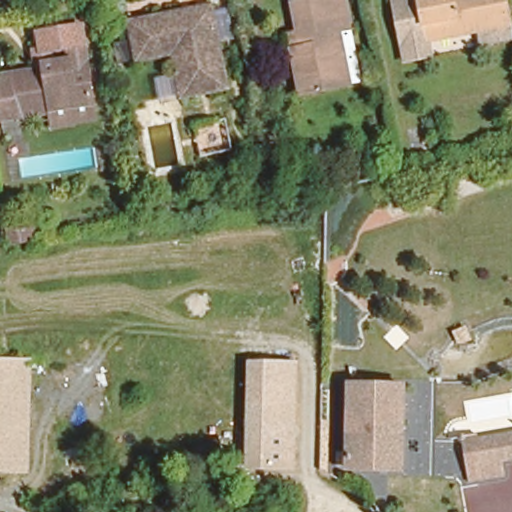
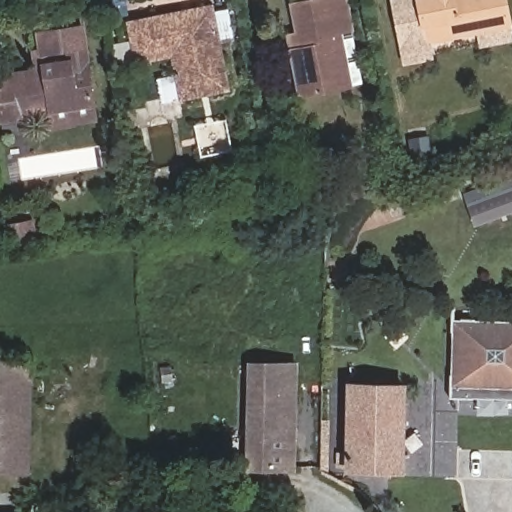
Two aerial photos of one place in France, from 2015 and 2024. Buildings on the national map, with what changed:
unchanged [(343,91),(296,103),(286,60),(282,45),(297,41),(292,17),(321,11),(318,0),(337,0),(345,39),(355,88),(343,91)]
unchanged [(488,30),(488,29),(435,40),(435,41),(437,55),(412,60),(401,0),(512,0),(512,39),(491,42),(488,30)]
unchanged [(172,75),(167,55),(130,64),(129,60),(120,61),(117,47),(126,45),(121,21),(205,3),(215,52),(222,87),(177,96),(159,99),(155,79),(172,75)]
unchanged [(28,51),(35,50),(32,32),(82,23),(87,49),(71,51),(71,55),(47,60),(47,68),(32,71),(28,51)]
unchanged [(58,129),(56,112),(25,119),(17,74),(32,71),(47,68),(47,60),(71,55),(71,51),(87,49),(95,100),(99,122),(58,129)]
unchanged [(1,122),(0,120),(0,76),(17,74),(25,119),(1,122)]
new [(462,192),(512,174),(512,211),(474,225),(462,192)]
unchanged [(32,220),(36,240),(10,245),(6,225),(32,220)]
new [(452,319),(512,320),(512,399),(450,397),(452,319)]
unchanged [(26,364),(26,367),(22,475),(0,475),(0,364),(26,364)]
unchanged [(239,373),(239,370),(299,370),(298,476),(239,475),(235,475),(239,373)]
unchanged [(348,385),(402,386),(401,473),(347,472),(348,385)]
demolished [(505,478),(467,485),(456,438),(476,435),(477,440),(512,433),(512,460),(502,462),(505,478)]

